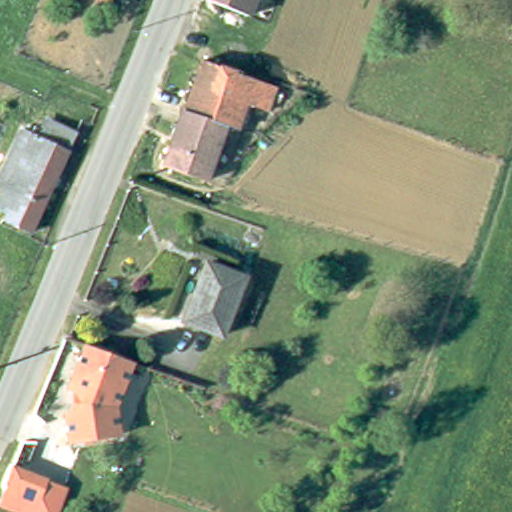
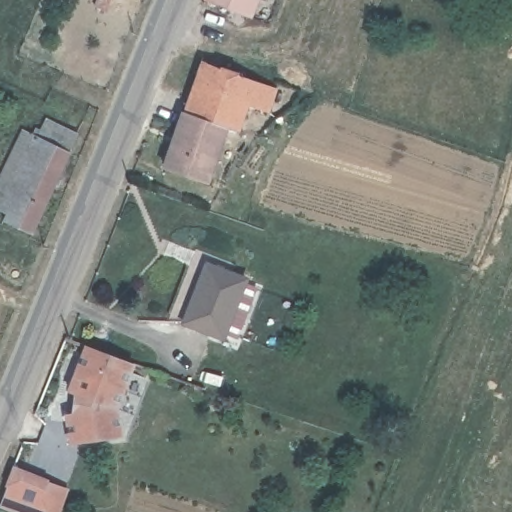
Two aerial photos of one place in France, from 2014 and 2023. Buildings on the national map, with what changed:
unchanged [(220,0),(249,0),(245,10),(220,0)]
unchanged [(277,81),(268,106),(248,99),(240,122),(262,130),(254,153),(232,145),(219,180),(165,161),(202,55),(222,62),(233,66),(277,81)]
unchanged [(34,129),(37,121),(47,125),(50,116),(75,128),(32,226),(5,215),(8,208),(0,204),(0,177),(24,125),(34,129)]
unchanged [(185,309),(207,252),(245,268),(223,325),(185,309)]
unchanged [(121,400),(75,383),(91,339),(137,355),(121,400)]
unchanged [(65,412),(71,410),(75,383),(121,400),(118,408),(122,434),(69,442),(65,412)]
unchanged [(0,505),(5,485),(12,465),(49,478),(69,486),(60,512),(14,512),(0,507),(0,505)]

